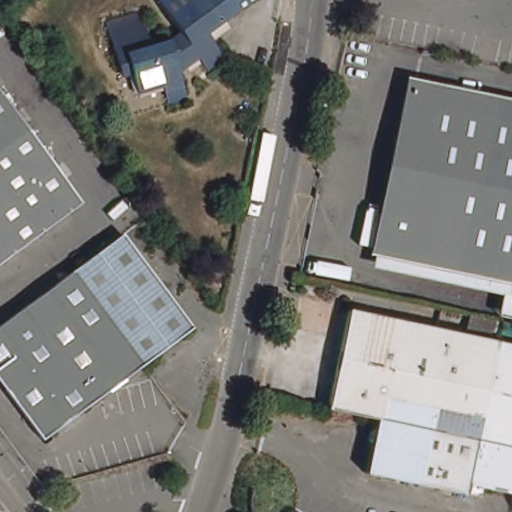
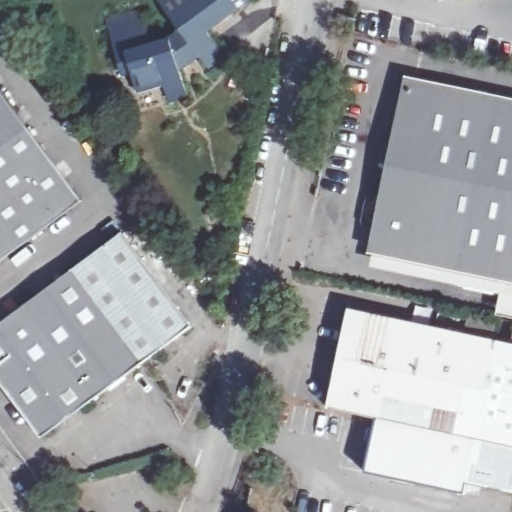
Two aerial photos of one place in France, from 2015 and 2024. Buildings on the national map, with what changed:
unchanged [(230,60),(212,72),(204,60),(185,74),(193,100),(175,106),(168,89),(143,96),(137,77),(128,80),(111,24),(147,13),(157,47),(175,42),(185,35),(160,0),(260,0),(212,35),(230,60)]
unchanged [(512,99),(512,284),(507,283),(373,255),(410,77),(512,99)]
unchanged [(81,200),(0,260),(0,90),(81,200)]
unchanged [(128,233),(196,325),(47,436),(0,372),(0,327),(128,233)]
unchanged [(512,317),(500,315),(507,283),(512,284),(512,317)]
unchanged [(380,430),(381,422),(332,412),(353,312),(512,347),(512,496),(472,487),(470,498),(370,476),(376,450),(371,445),(373,434),(380,430)]
unchanged [(240,510),(244,511),(245,512),(235,512),(235,511),(240,510)]

